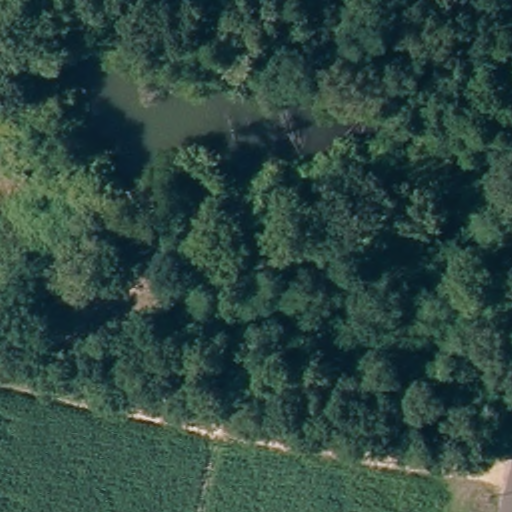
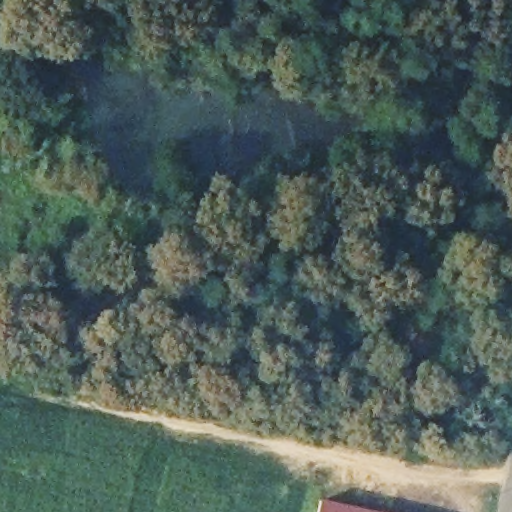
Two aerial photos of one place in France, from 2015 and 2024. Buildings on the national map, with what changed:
new [(320,498),(382,512),(318,512),(320,498)]

